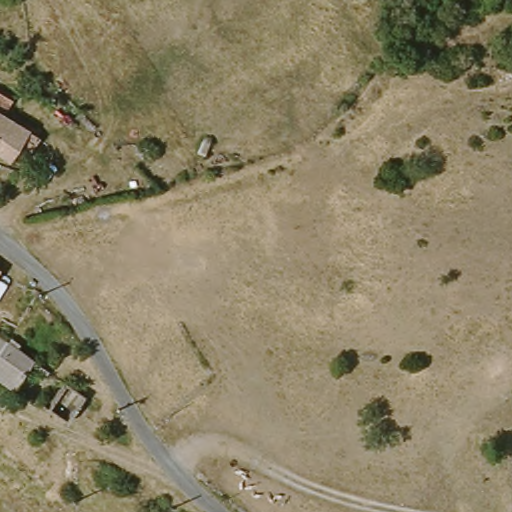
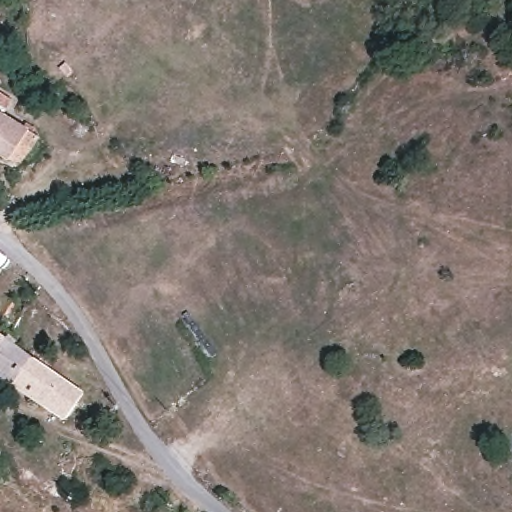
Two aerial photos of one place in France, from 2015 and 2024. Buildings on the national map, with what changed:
unchanged [(25,160),(20,156),(17,159),(0,148),(0,109),(45,134),(32,157),(25,160)]
new [(85,392),(66,421),(11,387),(0,380),(0,335),(34,358),(85,392)]
demolished [(27,363),(7,390),(0,385),(0,343),(2,345),(27,363)]

